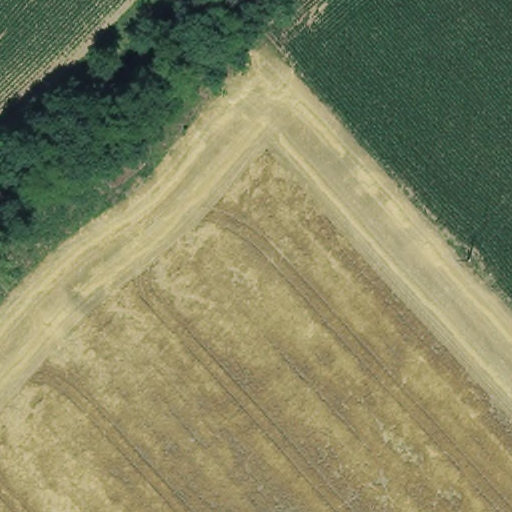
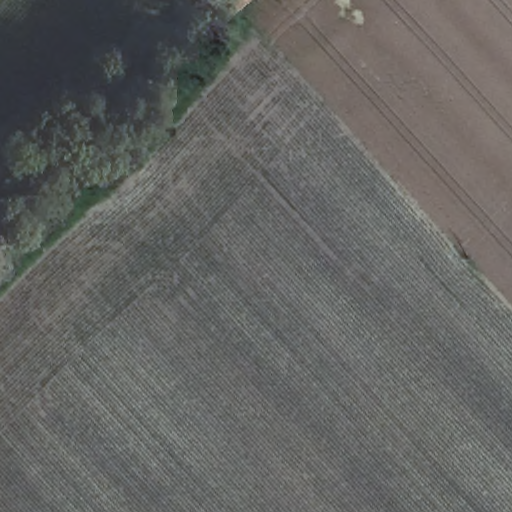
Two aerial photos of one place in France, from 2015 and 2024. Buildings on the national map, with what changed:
unchanged [(90,170),(119,145),(146,172),(115,196),(90,170)]

